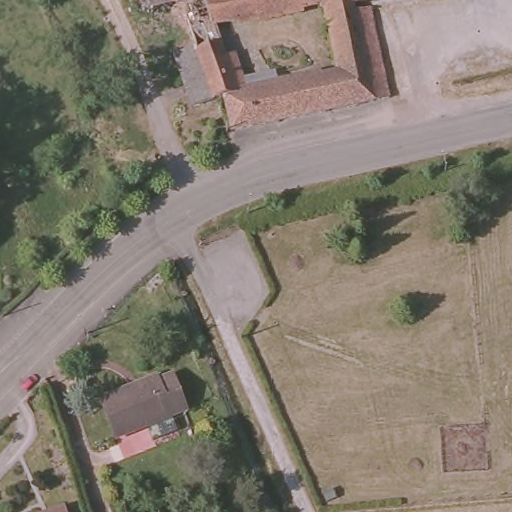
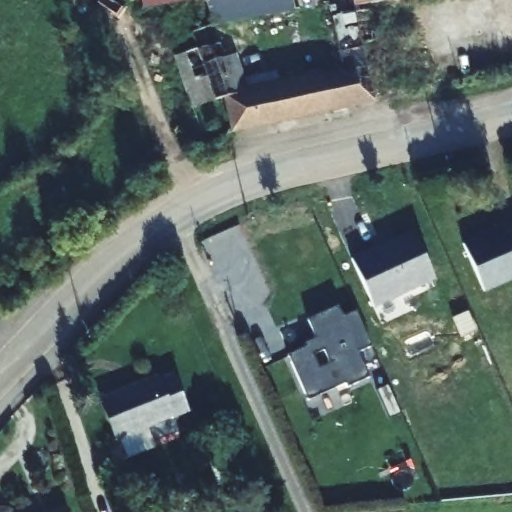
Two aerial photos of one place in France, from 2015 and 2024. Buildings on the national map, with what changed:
unchanged [(157,7),(144,9),(142,0),(194,0),(182,2),(157,7)]
unchanged [(175,56),(197,49),(182,2),(194,0),(350,0),(351,4),(352,10),(368,9),(391,98),(232,132),(224,97),(194,107),(175,56)]
unchanged [(350,0),(374,0),(351,4),(350,0)]
new [(373,307),(351,258),(412,230),(434,278),(373,307)]
new [(307,340),(306,337),(317,331),(309,312),(340,298),(345,310),(358,303),(375,340),(360,346),(372,371),(349,381),(347,377),(310,393),(290,348),(307,340)]
unchanged [(152,375),(154,379),(169,372),(183,406),(115,437),(97,400),(152,375)]
unchanged [(63,512),(36,512),(60,504),(63,512)]

